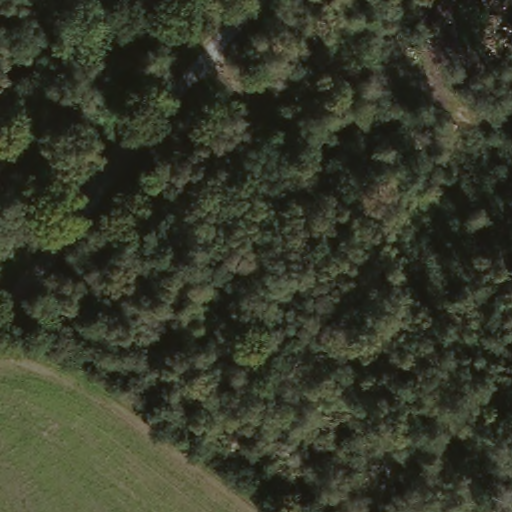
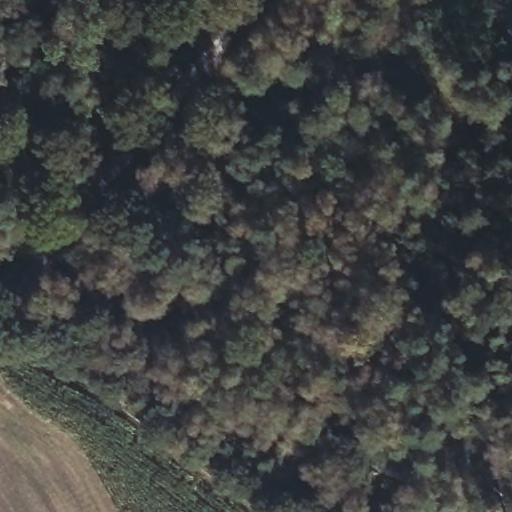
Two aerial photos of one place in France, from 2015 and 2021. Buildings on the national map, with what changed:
unchanged [(164,175),(151,176),(150,164),(161,162),(164,175)]

